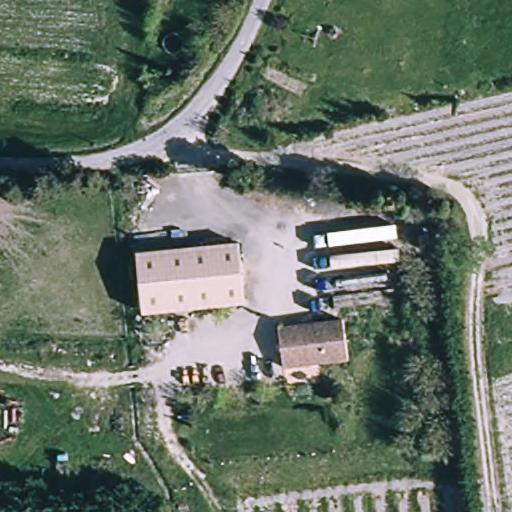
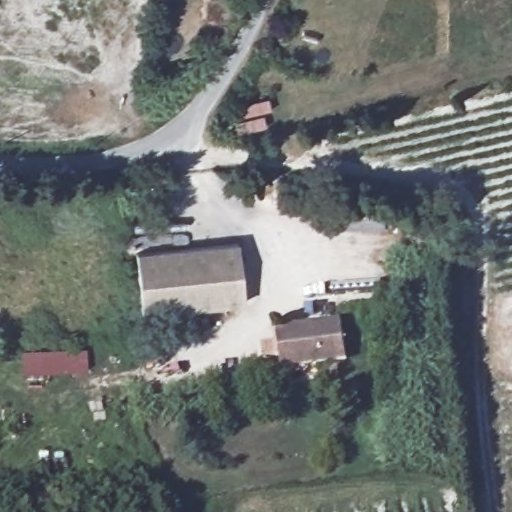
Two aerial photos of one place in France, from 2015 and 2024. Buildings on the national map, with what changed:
unchanged [(230,240),(237,300),(144,311),(136,251),(230,240)]
unchanged [(345,316),(349,356),(285,363),(281,324),(345,316)]
new [(86,347),(88,371),(21,373),(21,349),(86,347)]

